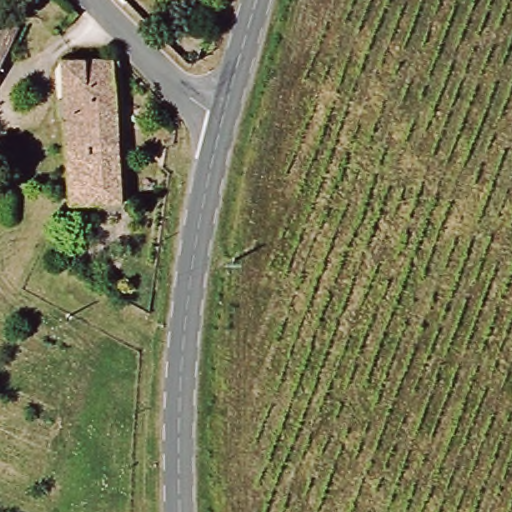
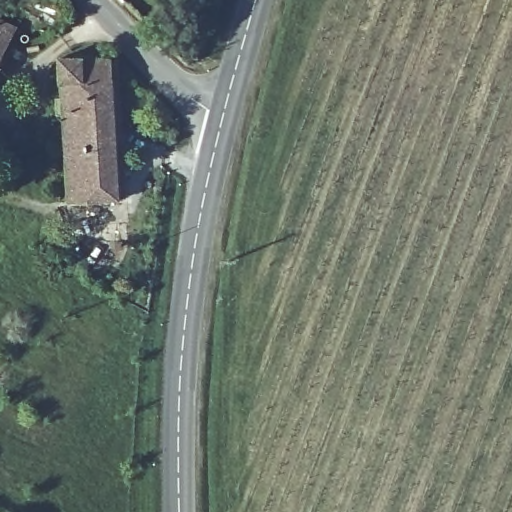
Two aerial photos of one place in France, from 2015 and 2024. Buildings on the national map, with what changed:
unchanged [(0,57),(0,21),(15,28),(0,57)]
unchanged [(116,201),(65,202),(61,98),(59,91),(59,69),(81,67),(108,66),(116,201)]

